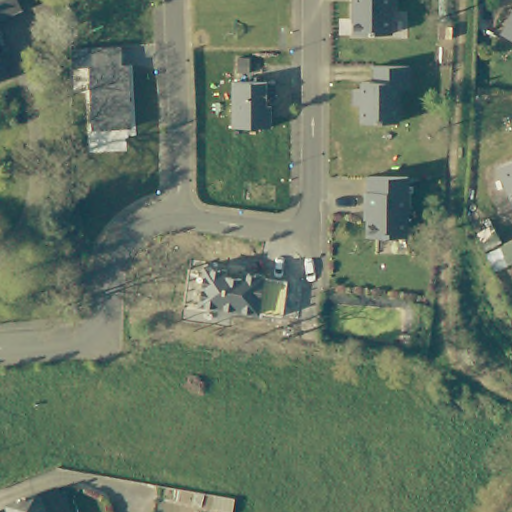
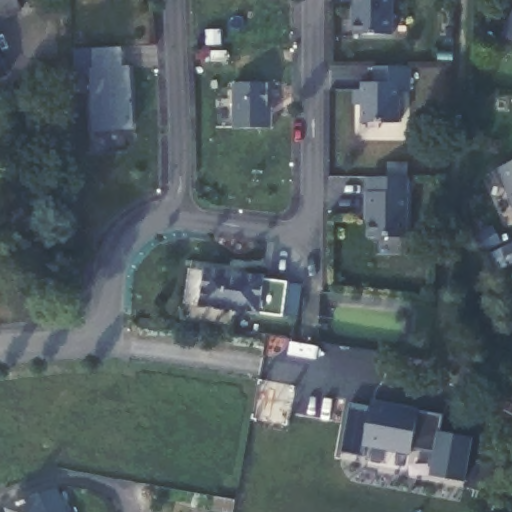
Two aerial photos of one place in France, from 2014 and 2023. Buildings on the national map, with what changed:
unchanged [(21,7),(0,16),(0,0),(18,0),(21,7)]
unchanged [(351,0),(388,0),(389,41),(352,41),(351,0)]
unchanged [(502,31),(512,12),(512,36),(502,31)]
unchanged [(93,129),(89,66),(79,66),(77,48),(122,46),(125,66),(130,66),(134,128),(93,129)]
unchanged [(0,74),(0,59),(5,72),(0,74)]
unchanged [(406,74),(406,98),(396,98),(396,130),(359,130),(359,112),(351,112),(352,97),(360,97),(360,90),(372,90),(372,74),(406,74)]
unchanged [(234,128),(234,83),(267,82),(269,108),(273,107),(273,126),(234,128)]
unchanged [(491,166),(512,157),(512,215),(491,166)]
unchanged [(402,244),(363,244),(363,217),(361,217),(361,200),(363,200),(363,185),(397,185),(403,185),(402,244)]
unchanged [(221,271),(221,274),(237,276),(238,273),(259,276),(258,278),(282,281),(278,317),(195,306),(179,304),(183,269),(200,271),(200,269),(221,271)]
new [(371,406),(373,401),(442,414),(440,433),(471,437),(465,479),(433,474),(436,453),(411,448),(410,453),(366,445),(365,456),(341,452),(351,402),(371,406)]
unchanged [(65,512),(8,512),(6,509),(56,490),(65,512)]

